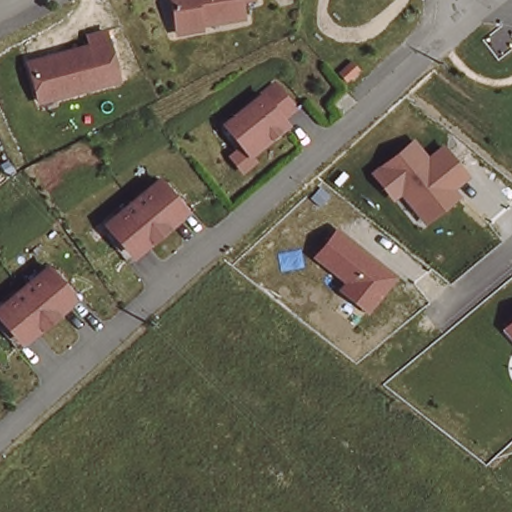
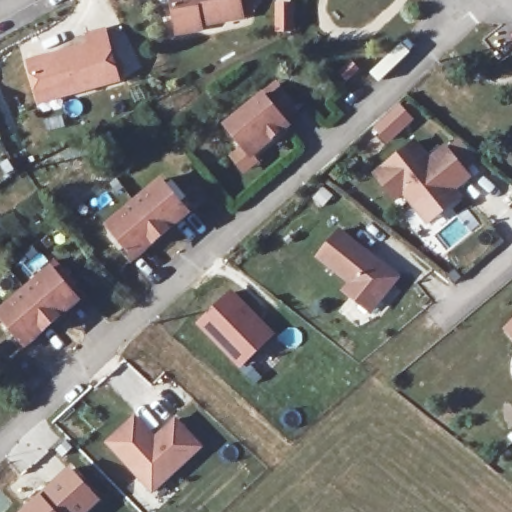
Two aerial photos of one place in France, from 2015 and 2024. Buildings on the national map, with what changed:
unchanged [(234,0),(236,14),(192,20),(193,25),(170,29),(167,18),(165,0),(234,0)]
new [(292,1),(292,31),(274,31),(275,1),(292,1)]
unchanged [(35,91),(26,56),(88,41),(85,31),(102,27),(115,76),(55,91),(37,96),(35,91)]
unchanged [(357,71),(344,83),(337,75),(349,63),(357,71)]
unchanged [(290,105),(277,115),(282,121),(257,142),(252,137),(242,146),(220,121),(270,81),(290,105)]
new [(399,105),(414,120),(387,146),(372,130),(399,105)]
unchanged [(472,178),(457,193),(462,200),(429,225),(405,194),(396,201),(374,174),(417,139),(431,156),(447,146),(472,178)]
unchanged [(114,250),(120,246),(102,225),(155,181),(173,202),(179,197),(188,208),(168,225),(144,245),(124,261),(114,250)]
unchanged [(399,277),(370,313),(340,293),(347,283),(314,259),(338,228),(399,277)]
unchanged [(9,333),(15,328),(0,311),(0,305),(50,263),(67,284),(73,279),(82,290),(62,307),(38,327),(19,344),(9,333)]
new [(230,287),(270,328),(240,359),(199,317),(230,287)]
unchanged [(512,322),(512,338),(503,330),(512,322)]
new [(151,494),(104,444),(134,414),(155,437),(175,416),(205,447),(151,494)]
new [(69,465),(100,500),(88,512),(16,512),(69,465)]

